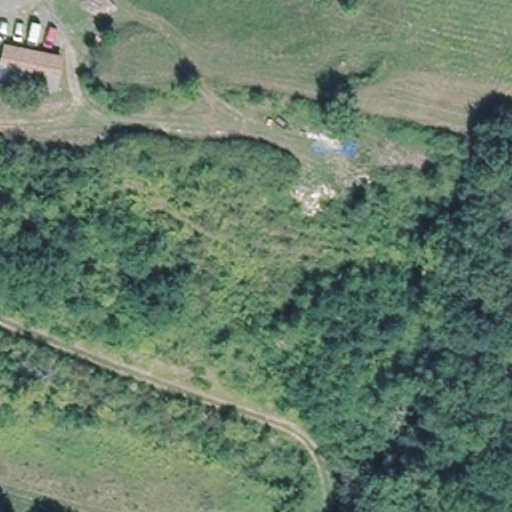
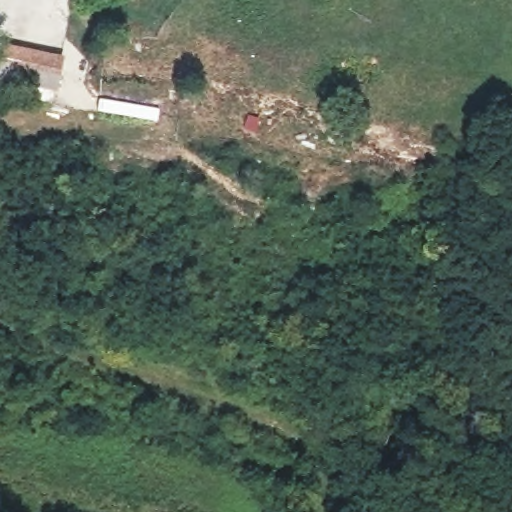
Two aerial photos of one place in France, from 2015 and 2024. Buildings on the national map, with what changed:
unchanged [(55,90),(0,77),(0,70),(6,43),(63,54),(55,90)]

